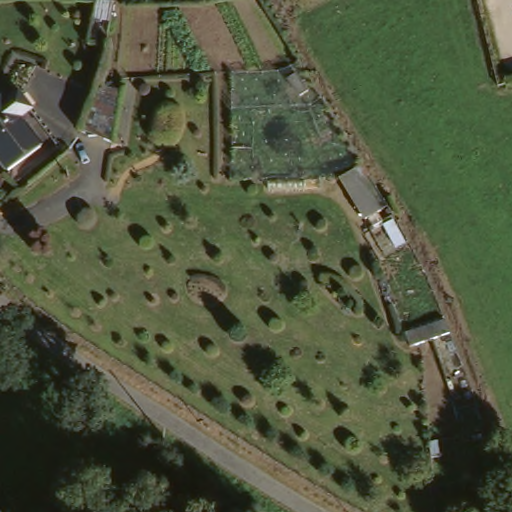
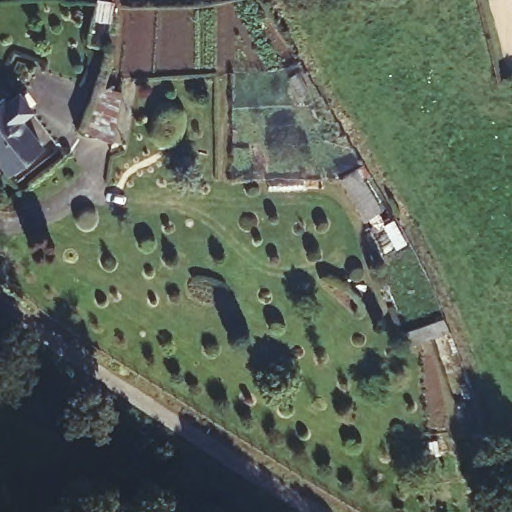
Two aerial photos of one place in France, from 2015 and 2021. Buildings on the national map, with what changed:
unchanged [(10,164),(9,165),(0,152),(0,102),(9,95),(41,142),(10,164)]
unchanged [(358,166),(386,213),(365,224),(340,177),(358,166)]

